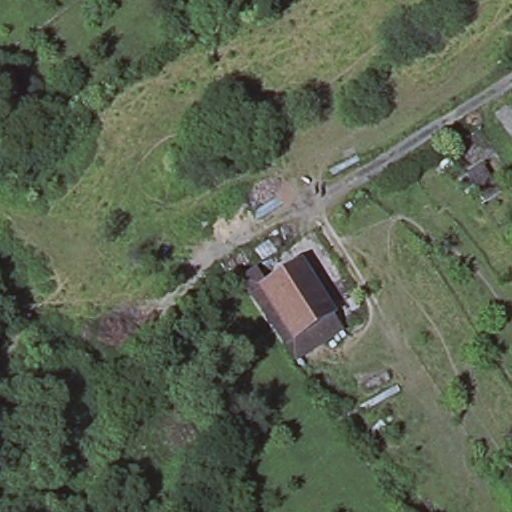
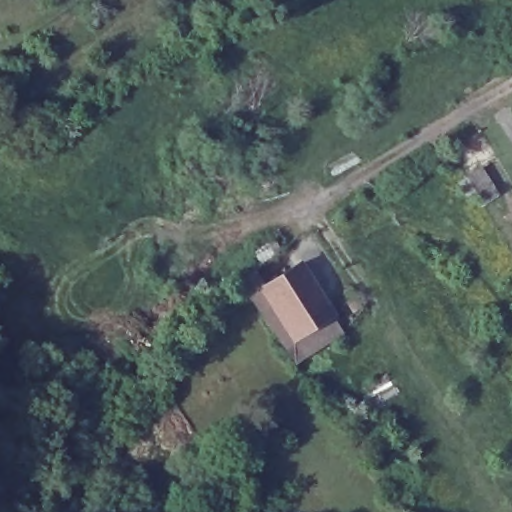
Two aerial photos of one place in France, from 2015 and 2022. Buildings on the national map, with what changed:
unchanged [(483,162),(500,190),(484,200),(467,172),(483,162)]
unchanged [(260,292),(300,268),(312,289),(274,313),(260,292)]
unchanged [(312,289),(332,318),(292,343),(274,313),(312,289)]

